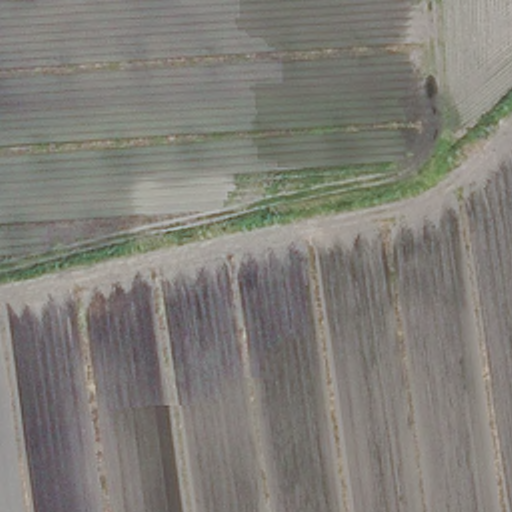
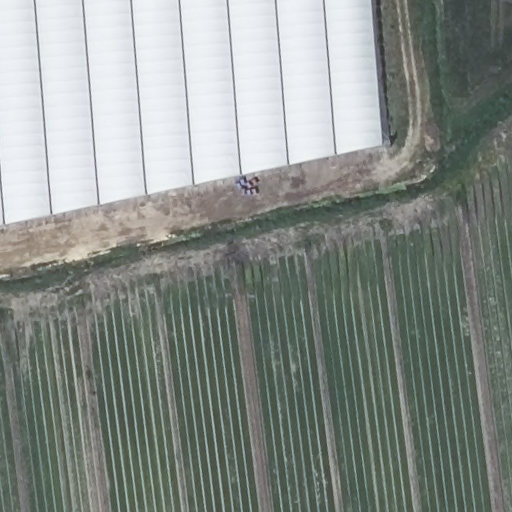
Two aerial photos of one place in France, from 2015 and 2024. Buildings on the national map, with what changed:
new [(0,230),(0,0),(378,0),(390,149),(0,230)]

